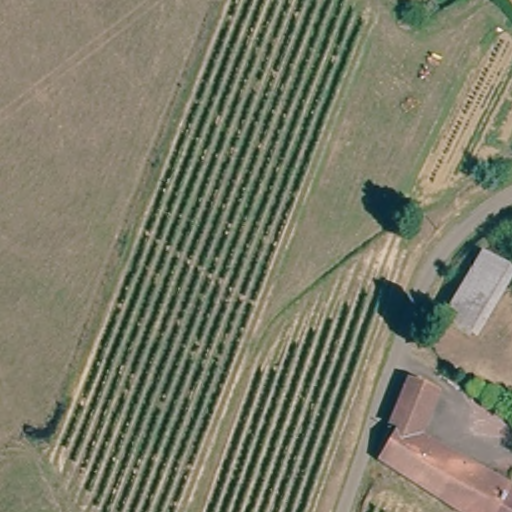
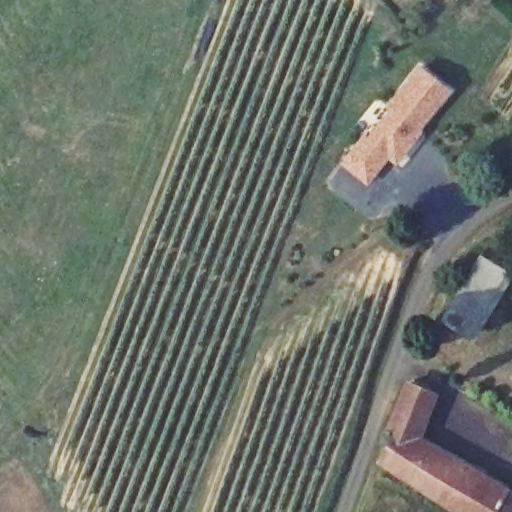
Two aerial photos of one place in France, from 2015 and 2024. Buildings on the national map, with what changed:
new [(453,90),(423,127),(424,134),(397,166),(388,159),(367,186),(340,163),(362,134),(368,138),(390,111),(385,108),(418,64),(453,90)]
unchanged [(512,267),(512,270),(477,338),(452,325),(487,255),(512,267)]
unchanged [(412,438),(397,429),(391,426),(406,387),(427,395),(412,438)]
unchanged [(489,512),(448,512),(380,474),(397,429),(412,438),(503,488),(489,512)]
unchanged [(503,488),(512,493),(512,512),(489,512),(503,488)]

